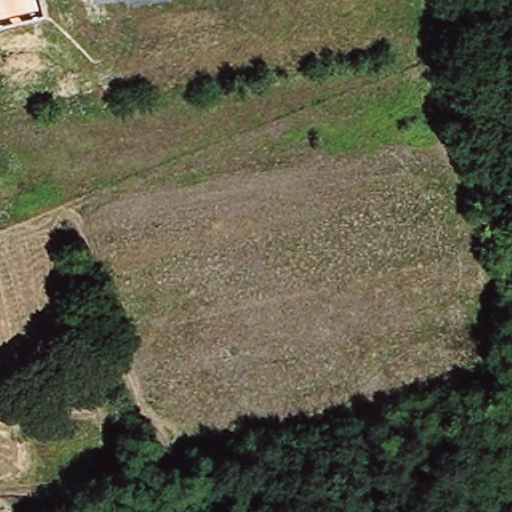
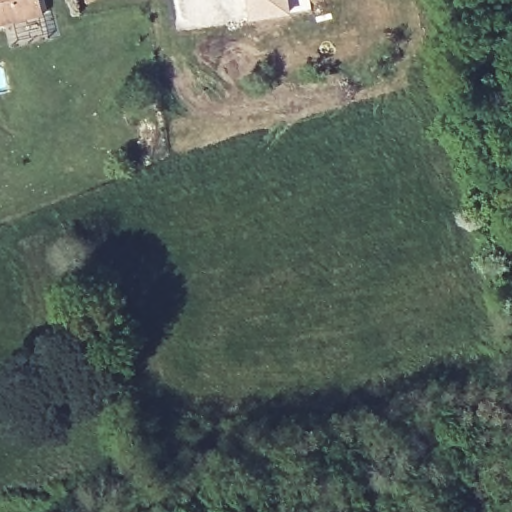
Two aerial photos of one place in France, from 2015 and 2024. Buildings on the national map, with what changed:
unchanged [(39,0),(43,14),(0,24),(0,0),(39,0)]
new [(248,20),(245,0),(286,0),(288,13),(248,20)]

